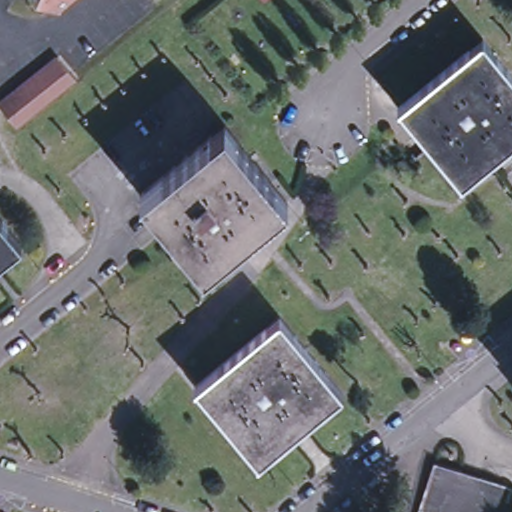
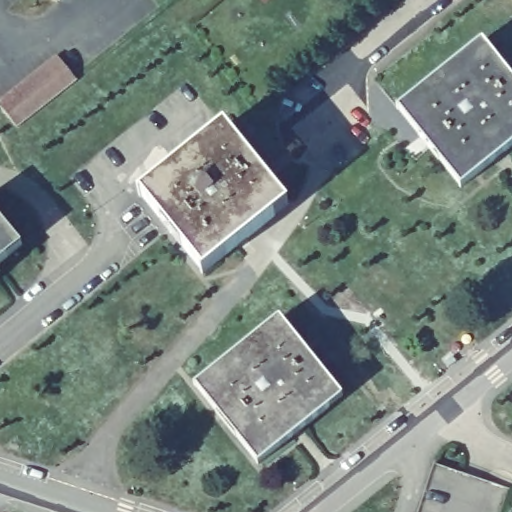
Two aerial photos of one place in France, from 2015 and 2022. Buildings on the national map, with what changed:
unchanged [(512,141),(457,181),(398,104),(484,37),(512,73),(512,141)]
unchanged [(77,75),(18,122),(0,101),(0,98),(58,51),(77,75)]
unchanged [(292,205),(206,271),(144,191),(227,127),(230,125),(232,129),(292,205)]
unchanged [(22,241),(0,259),(0,214),(22,241)]
unchanged [(282,318),(345,395),(258,462),(195,383),(282,318)]
unchanged [(504,512),(421,512),(437,465),(511,492),(504,512)]

